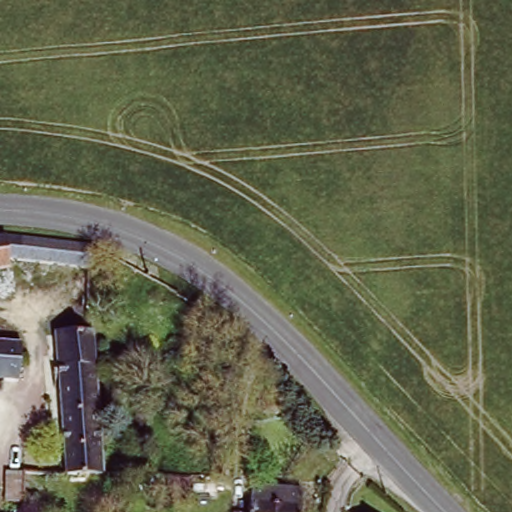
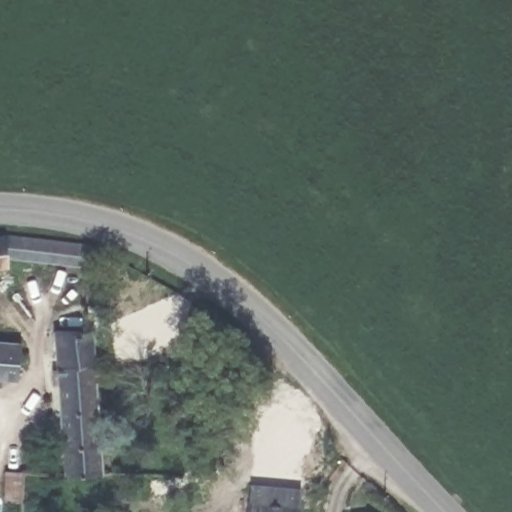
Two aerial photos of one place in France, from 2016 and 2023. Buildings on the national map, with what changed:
unchanged [(19,257),(17,267),(0,270),(0,236),(6,235),(93,245),(94,264),(19,257)]
unchanged [(109,481),(52,479),(52,470),(70,470),(59,337),(102,334),(109,481)]
unchanged [(19,381),(0,380),(0,344),(21,345),(19,381)]
unchanged [(301,512),(251,512),(254,486),(303,491),(301,512)]

